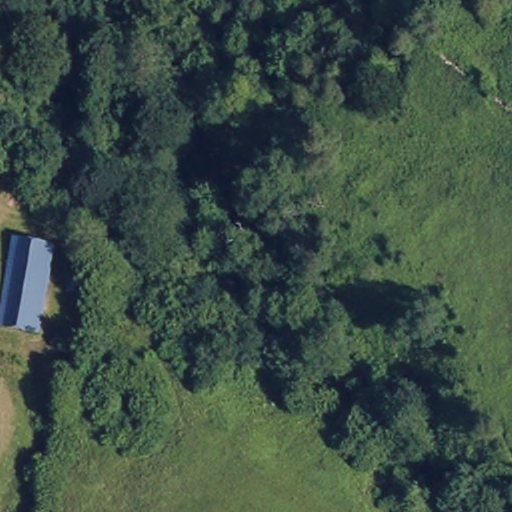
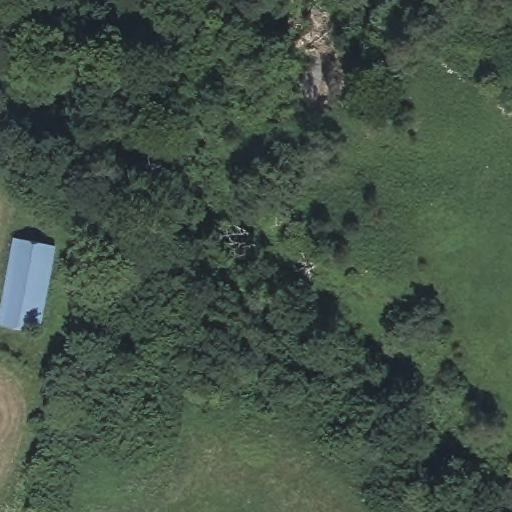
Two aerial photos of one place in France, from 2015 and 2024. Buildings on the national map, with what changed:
unchanged [(59,248),(42,334),(0,324),(0,304),(12,241),(59,248)]

